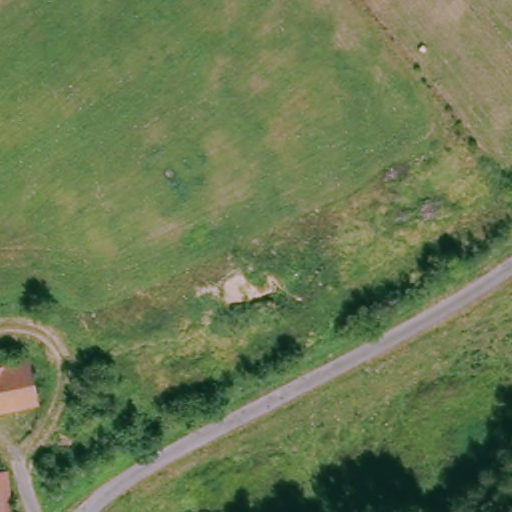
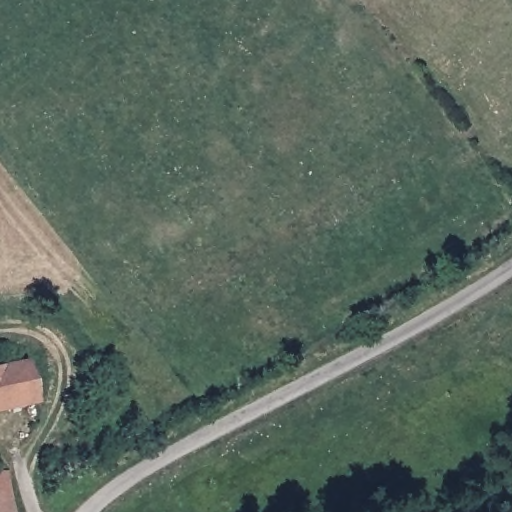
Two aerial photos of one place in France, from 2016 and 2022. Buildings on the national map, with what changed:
unchanged [(40,406),(0,414),(0,371),(31,365),(40,406)]
unchanged [(0,470),(4,470),(10,472),(3,486),(8,512),(0,512),(0,470)]

